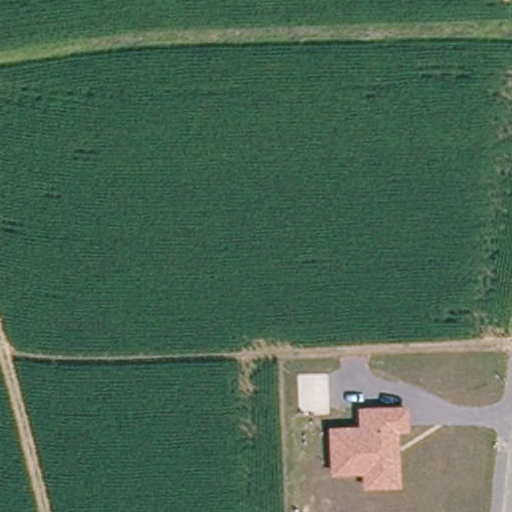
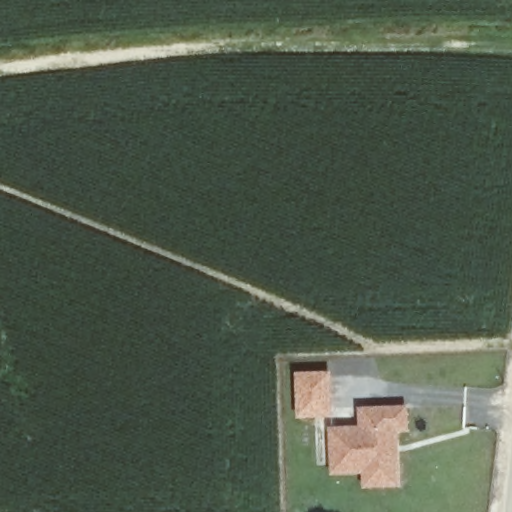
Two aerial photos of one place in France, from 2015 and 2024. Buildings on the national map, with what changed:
new [(330,371),(331,416),(296,418),(294,372),(330,371)]
unchanged [(402,488),(362,489),(362,477),(330,478),(327,428),(358,427),(357,408),(408,405),(410,433),(398,434),(402,488)]

